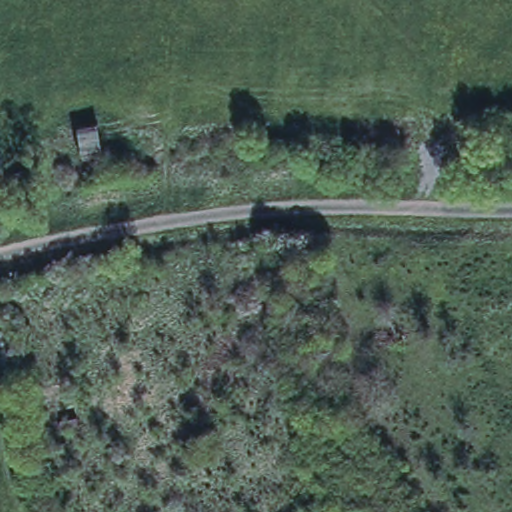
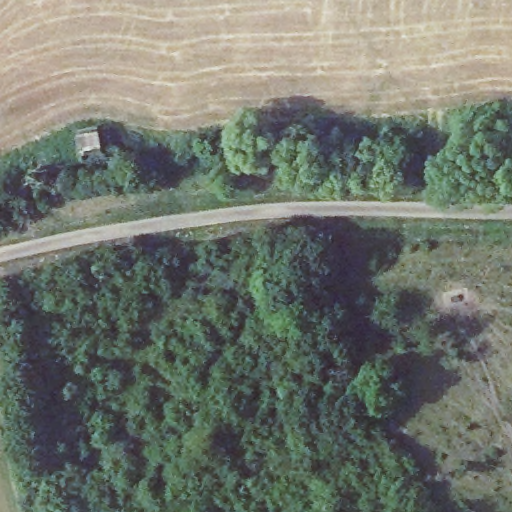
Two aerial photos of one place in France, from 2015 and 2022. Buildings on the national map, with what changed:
unchanged [(99,123),(105,156),(82,161),(78,129),(99,123)]

